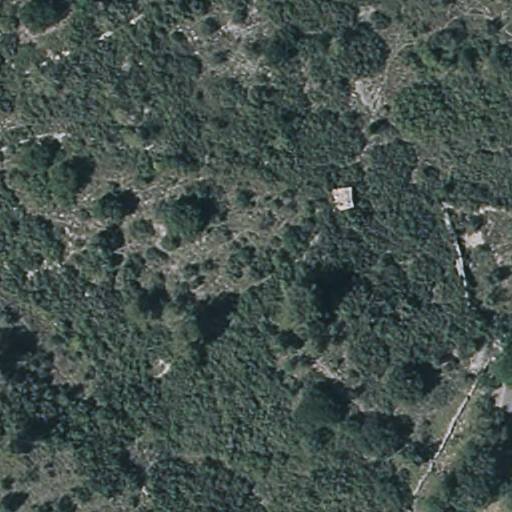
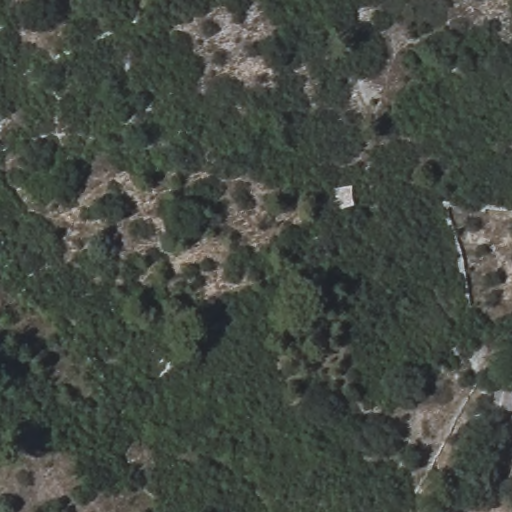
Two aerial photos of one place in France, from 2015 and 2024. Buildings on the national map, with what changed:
unchanged [(335,207),(334,191),(348,190),(351,209),(335,207)]
unchanged [(487,407),(494,374),(512,378),(512,386),(506,416),(487,407)]

